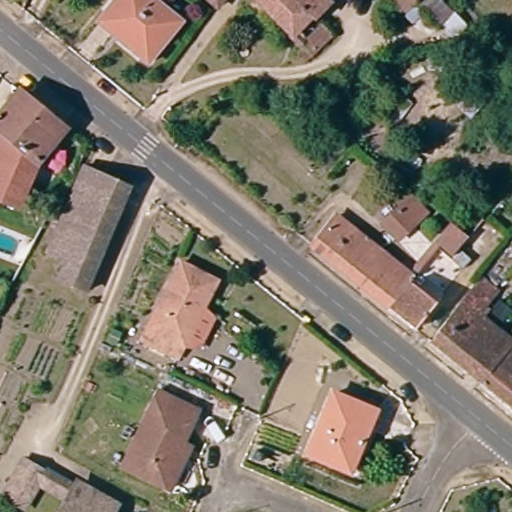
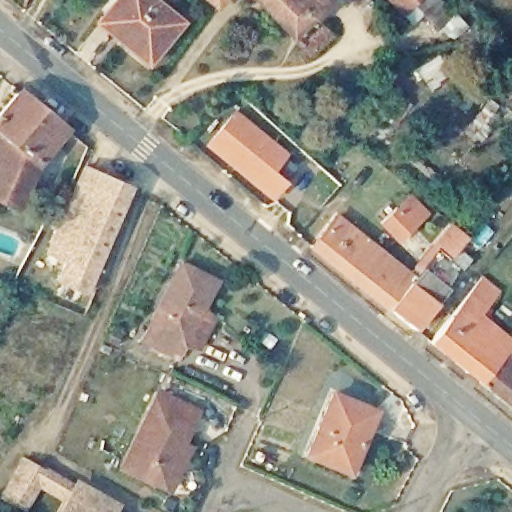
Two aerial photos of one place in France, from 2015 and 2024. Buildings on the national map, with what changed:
unchanged [(148,61),(99,21),(116,0),(157,0),(180,19),(148,61)]
unchanged [(207,0),(216,0),(212,5),(207,0)]
unchanged [(290,35),(258,0),(327,0),(314,12),(290,35)]
unchanged [(446,38),(420,11),(409,22),(388,0),(445,0),(464,21),(446,38)]
unchanged [(38,163),(22,205),(0,196),(0,106),(17,86),(68,126),(46,149),(38,163)]
new [(203,146),(234,109),(287,154),(274,171),(286,182),(271,201),(203,146)]
unchanged [(128,188),(88,292),(41,273),(84,171),(128,188)]
unchanged [(399,235),(386,223),(405,202),(409,197),(421,210),(416,216),(399,235)]
unchanged [(373,290),(317,246),(341,217),(397,257),(413,270),(406,279),(432,299),(414,323),(389,303),(373,290)]
unchanged [(446,260),(432,244),(429,241),(446,221),(465,236),(446,260)]
unchanged [(218,280),(182,356),(145,337),(182,262),(218,280)]
unchanged [(431,342),(472,286),(479,277),(497,291),(481,314),(512,341),(479,381),(431,342)]
unchanged [(479,381),(512,341),(512,407),(479,381)]
unchanged [(372,415),(359,445),(352,442),(340,469),(306,454),(333,396),(372,415)]
unchanged [(196,413),(178,451),(182,452),(166,486),(130,467),(163,397),(196,413)]
unchanged [(29,470),(48,479),(34,512),(15,502),(29,470)]
unchanged [(72,505),(49,492),(56,476),(79,490),(82,486),(121,509),(120,512),(68,512),(72,505)]

